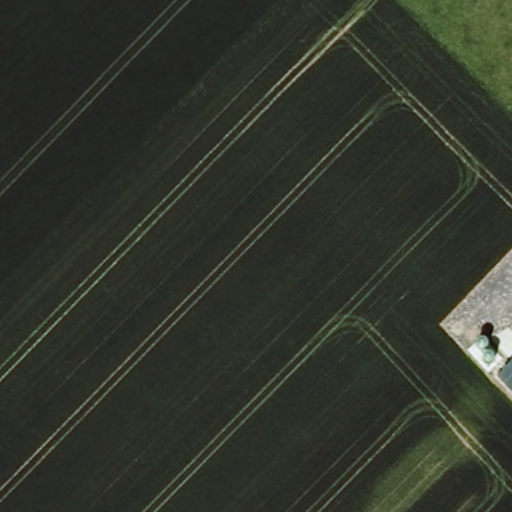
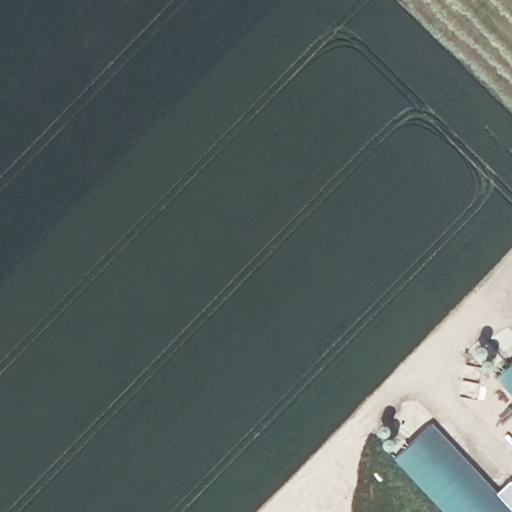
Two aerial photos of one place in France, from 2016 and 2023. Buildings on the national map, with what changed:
unchanged [(512,364),(512,394),(496,377),(512,364)]
new [(433,422),(500,493),(512,480),(512,512),(446,512),(396,460),(433,422)]

